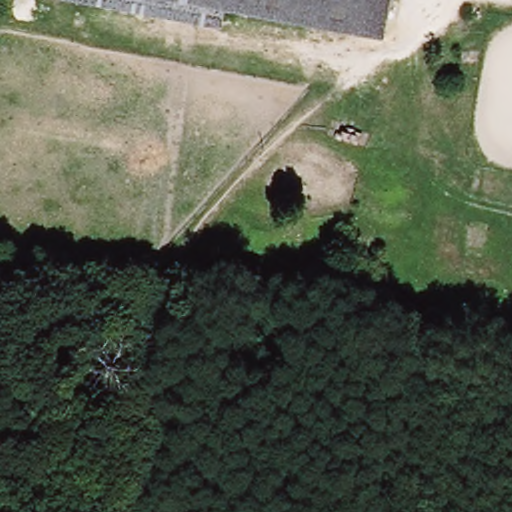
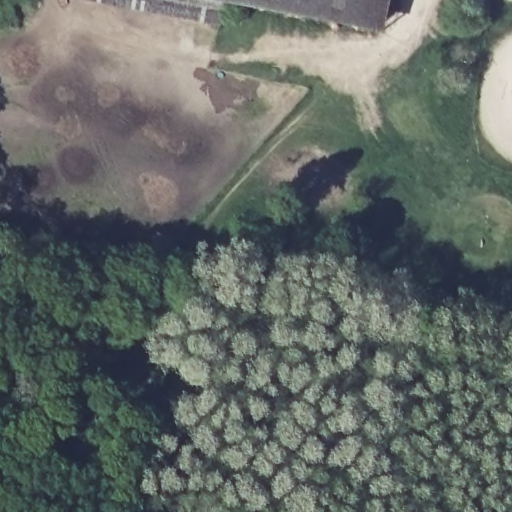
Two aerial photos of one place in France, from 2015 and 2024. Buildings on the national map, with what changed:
unchanged [(216,30),(63,0),(390,0),(383,36),(220,7),(216,30)]

